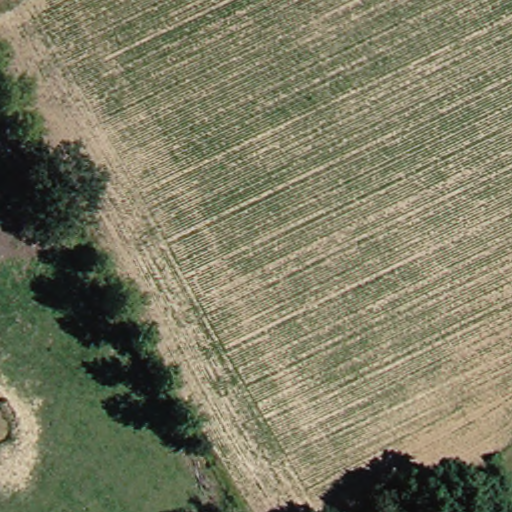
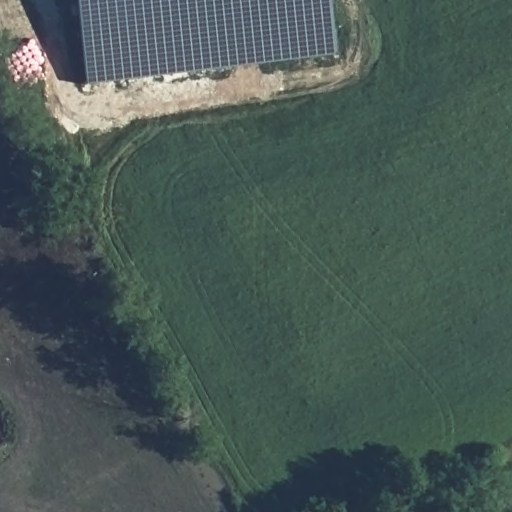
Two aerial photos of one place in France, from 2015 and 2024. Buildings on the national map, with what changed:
new [(329,0),(336,56),(87,85),(76,0),(329,0)]

